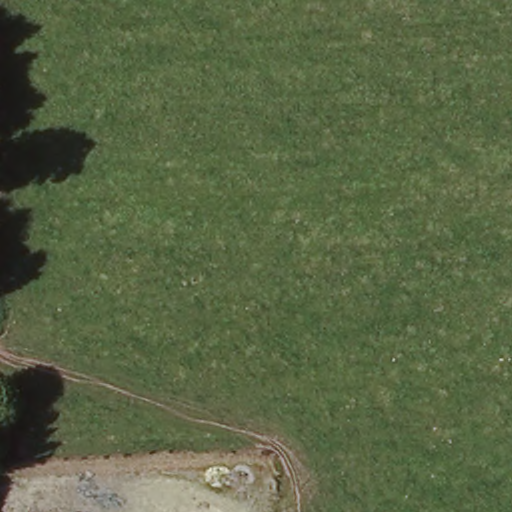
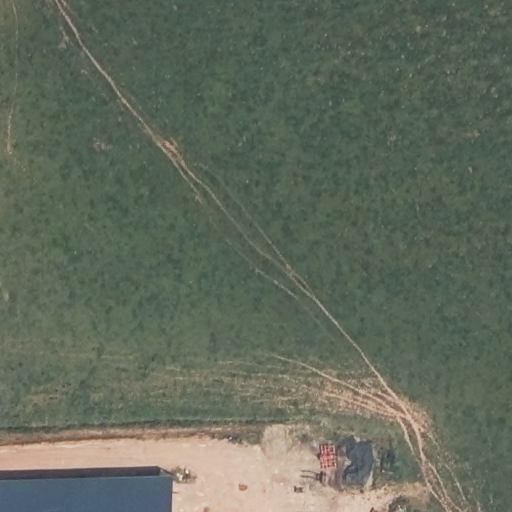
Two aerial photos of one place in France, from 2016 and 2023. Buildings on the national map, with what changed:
new [(0,480),(179,477),(179,512),(0,512),(0,480)]

